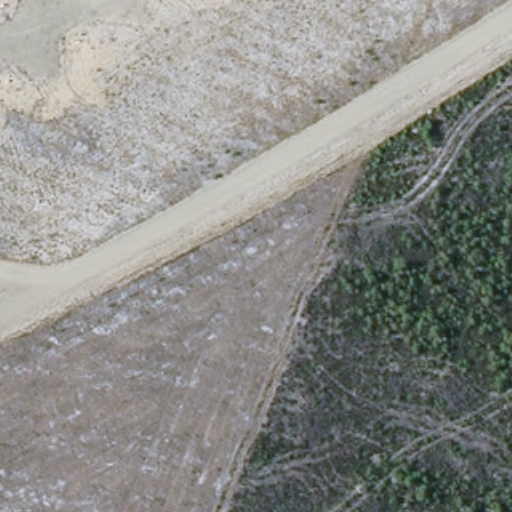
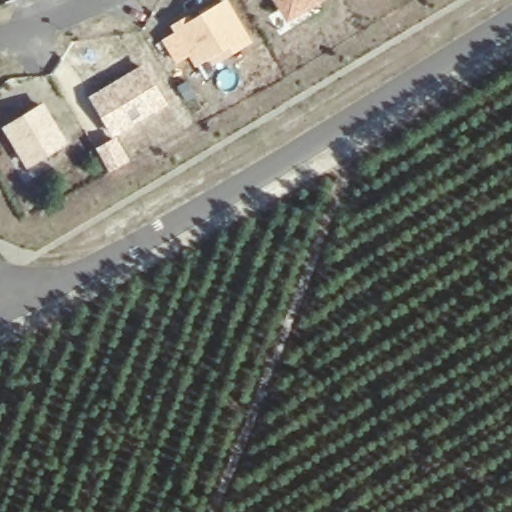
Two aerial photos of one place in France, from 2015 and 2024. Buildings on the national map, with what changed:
new [(192,10),(195,16),(221,0),(229,0),(253,41),(213,65),(208,58),(195,65),(171,24),(192,10)]
new [(289,20),(276,0),(322,0),(289,20)]
new [(169,104),(114,138),(88,96),(143,63),(169,104)]
new [(44,100),(70,142),(27,167),(3,125),(44,100)]

